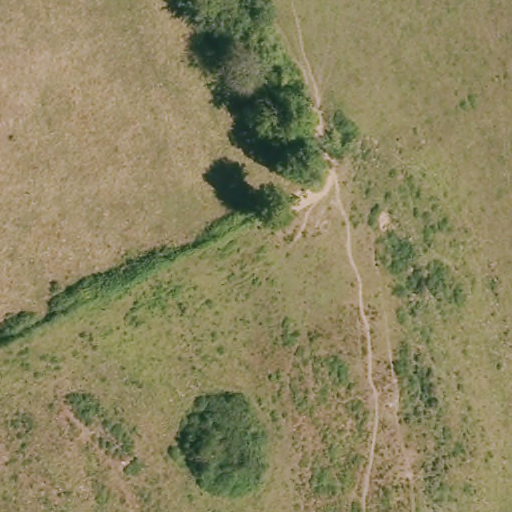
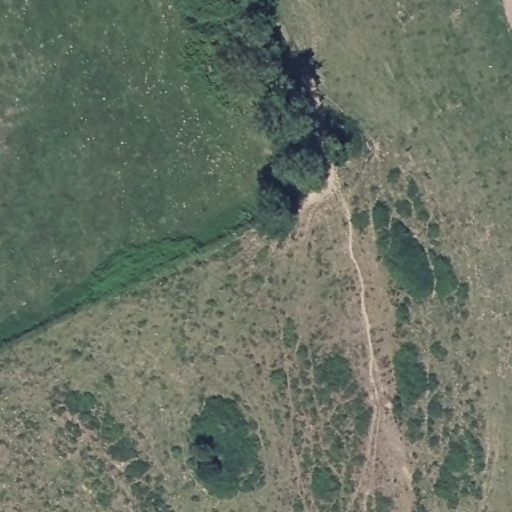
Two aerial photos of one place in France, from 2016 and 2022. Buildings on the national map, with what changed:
[]

